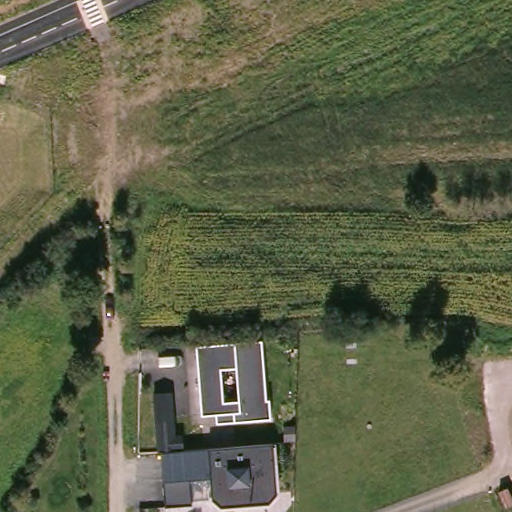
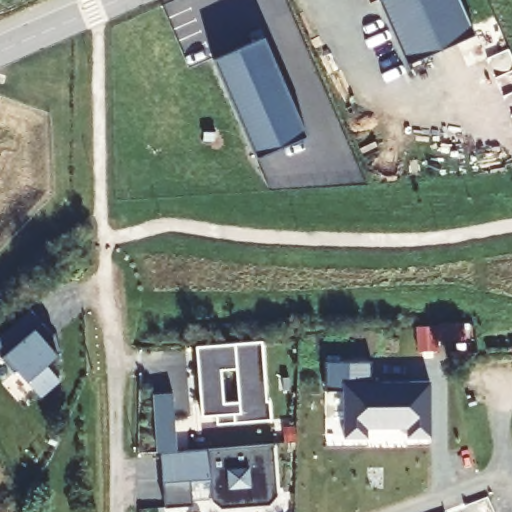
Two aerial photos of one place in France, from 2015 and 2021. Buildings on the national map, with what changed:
new [(473,35),(407,64),(379,0),(369,5),(367,0),(458,0),(473,35)]
new [(214,57),(263,38),(304,135),(257,156),(214,57)]
new [(15,371),(13,373),(2,357),(43,323),(54,339),(48,344),(56,356),(45,365),(59,382),(40,396),(15,371)]
unchanged [(263,338),(268,418),(214,422),(213,413),(198,414),(194,345),(263,338)]
new [(328,355),(375,356),(374,378),(433,378),(433,438),(409,438),(409,427),(369,427),(369,438),(346,438),(346,387),(328,387),(328,355)]
unchanged [(279,496),(267,506),(220,509),(209,497),(208,479),(190,480),(190,504),(161,506),(154,419),(175,417),(178,447),(272,442),(279,496)]

